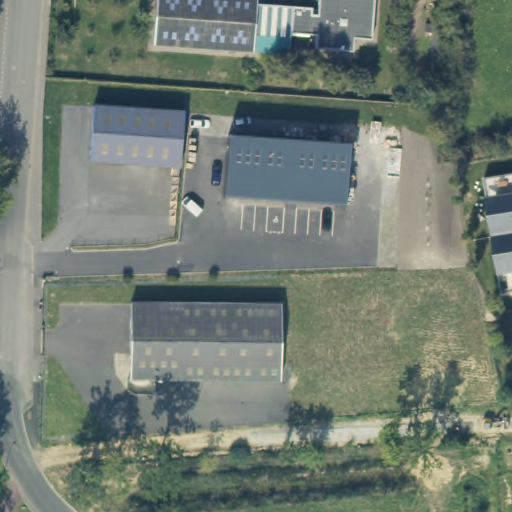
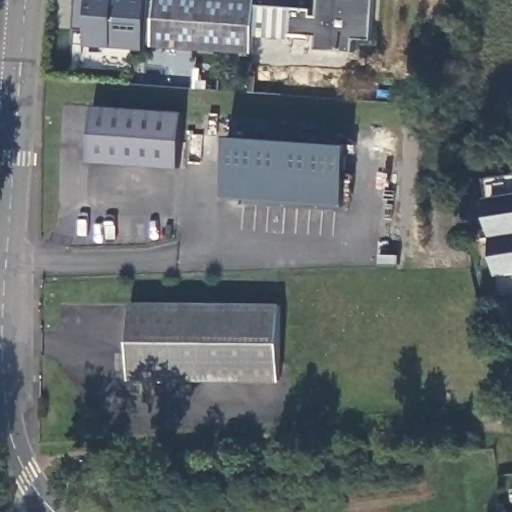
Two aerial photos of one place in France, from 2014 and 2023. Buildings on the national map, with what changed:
new [(114,48),(89,46),(73,44),(77,0),(149,0),(145,50),(114,48)]
unchanged [(310,14),(317,14),(318,0),(373,0),(369,46),(352,45),(350,64),(314,60),(315,47),(252,41),(251,56),(152,48),(156,0),(211,0),(311,9),(310,14)]
unchanged [(181,108),(181,117),(178,163),(88,159),(90,104),(181,108)]
unchanged [(229,136),(349,144),(342,205),(223,197),(229,136)]
unchanged [(512,291),(503,293),(503,292),(499,275),(487,199),(485,180),(512,175),(512,291)]
unchanged [(275,303),(275,377),(125,378),(124,306),(275,303)]

